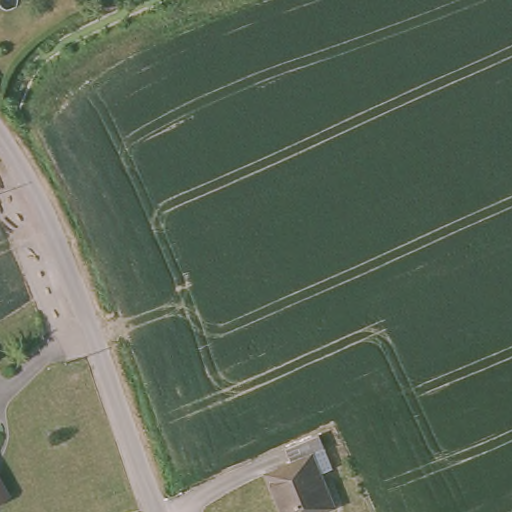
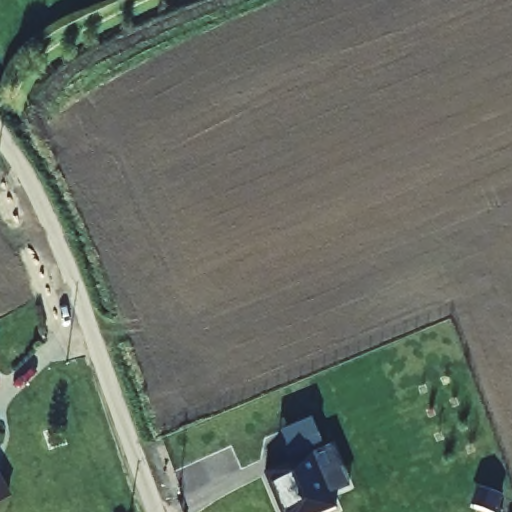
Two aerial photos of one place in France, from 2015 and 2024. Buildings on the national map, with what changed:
unchanged [(323,451),(310,457),(331,508),(321,512),(280,512),(265,475),(289,465),(282,447),(316,433),(323,451)]
unchanged [(3,449),(0,450),(0,444),(3,449)]
unchanged [(4,465),(13,465),(22,484),(0,495),(0,456),(4,465)]
unchanged [(4,508),(3,512),(0,512),(0,500),(4,508)]

